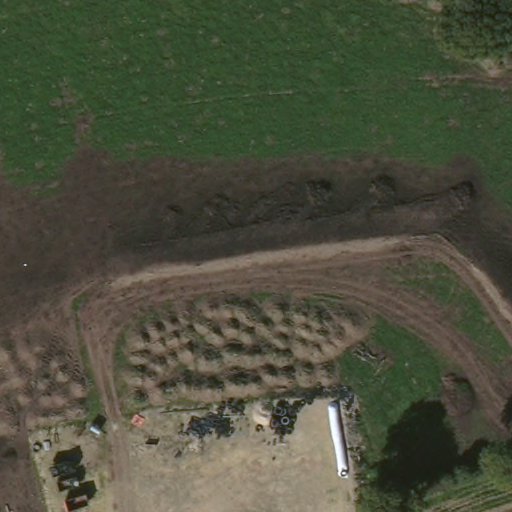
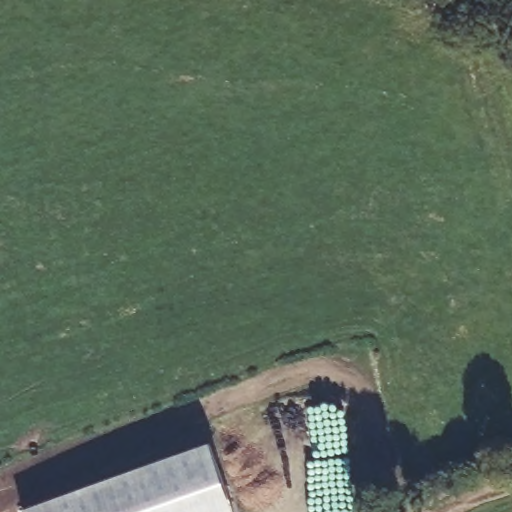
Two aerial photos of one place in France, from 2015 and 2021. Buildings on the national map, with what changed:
new [(211,442),(236,512),(26,512),(25,508),(211,442)]

